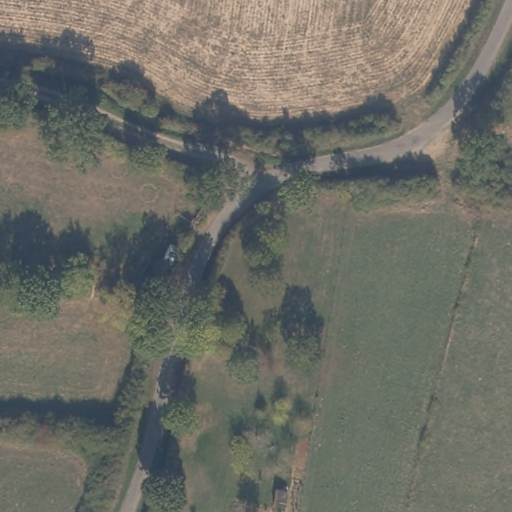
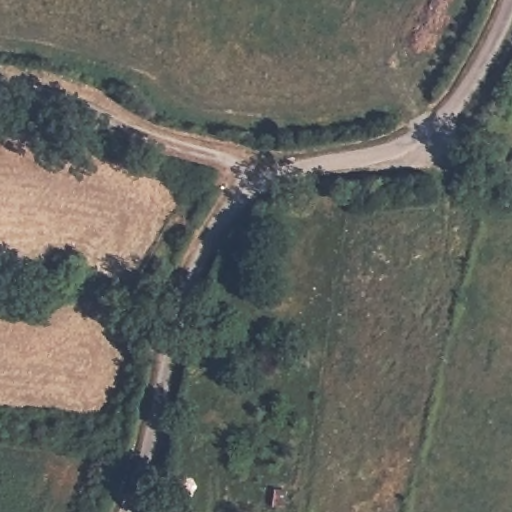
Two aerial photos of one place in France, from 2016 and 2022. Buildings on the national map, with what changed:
unchanged [(274,505),(276,489),(288,491),(287,508),(274,505)]

